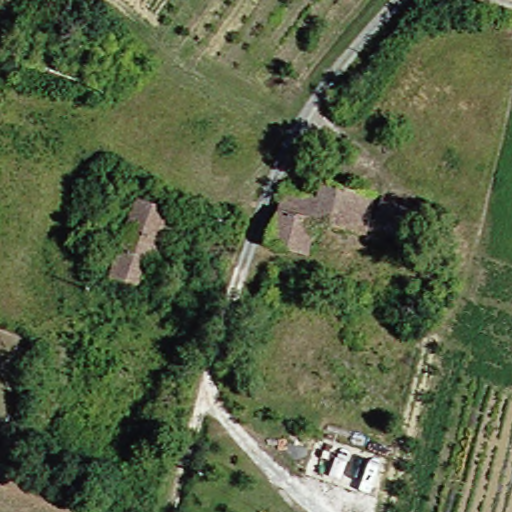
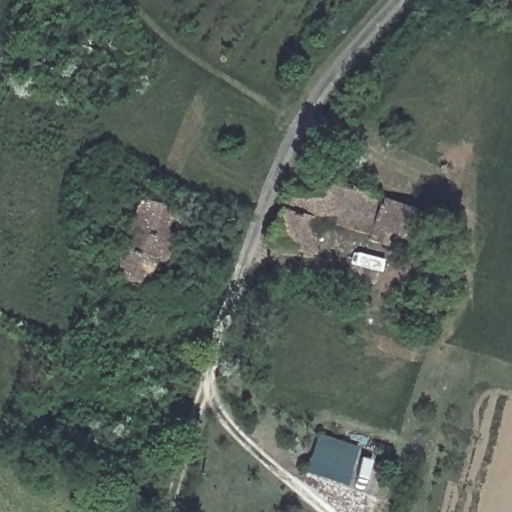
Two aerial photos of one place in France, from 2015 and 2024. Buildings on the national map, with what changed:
unchanged [(294,190),(321,201),(329,181),(379,197),(367,237),(325,225),(314,255),(278,244),(294,190)]
unchanged [(172,295),(123,280),(119,278),(113,276),(113,271),(136,201),(199,221),(180,272),(178,281),(172,295)]
unchanged [(387,201),(425,215),(414,244),(377,232),(387,201)]
new [(304,471),(317,433),(357,447),(345,485),(304,471)]

